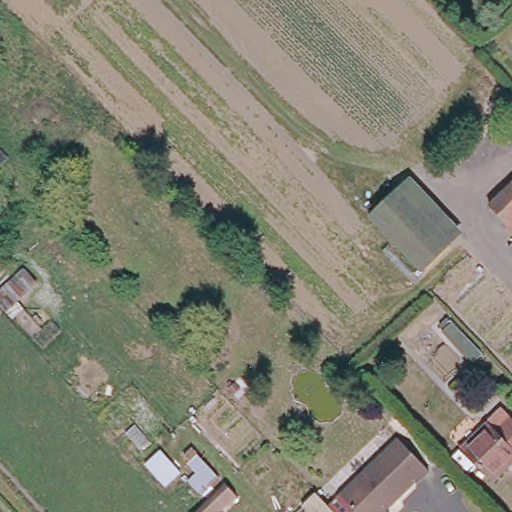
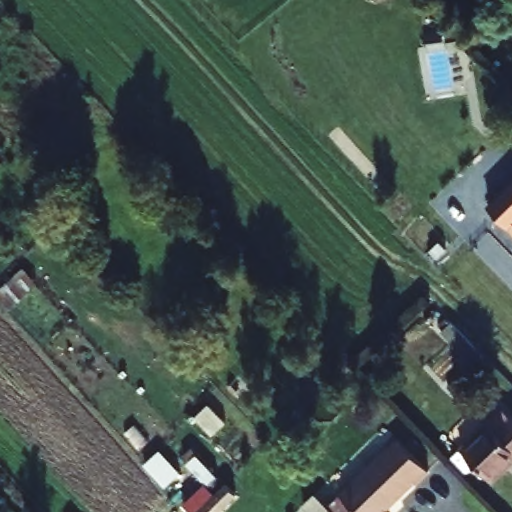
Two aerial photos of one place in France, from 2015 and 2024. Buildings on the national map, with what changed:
demolished [(369,212),(413,177),(464,231),(421,267),(369,212)]
unchanged [(512,186),(512,222),(494,204),(512,186)]
demolished [(465,330),(488,356),(475,366),(451,340),(465,330)]
unchanged [(512,462),(493,479),(458,440),(503,399),(512,409),(512,462)]
unchanged [(423,486),(421,483),(392,511),(393,512),(366,512),(349,492),(404,438),(436,472),(423,486)]
unchanged [(207,512),(198,505),(214,489),(187,459),(198,450),(240,490),(217,512),(207,512)]
unchanged [(318,491),(331,504),(340,495),(357,512),(311,512),(304,504),(318,491)]

